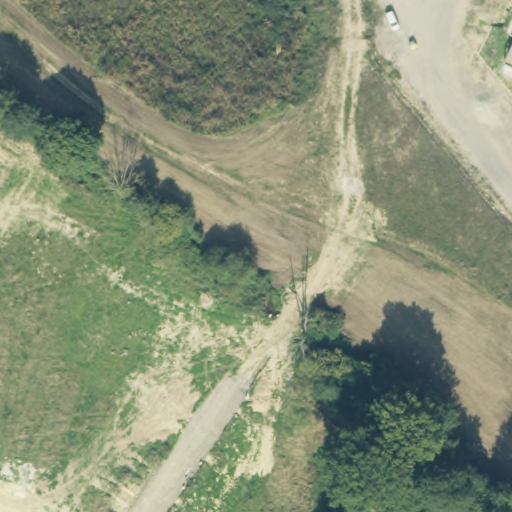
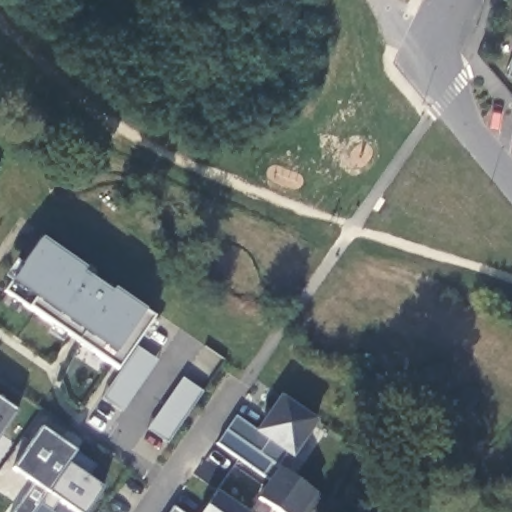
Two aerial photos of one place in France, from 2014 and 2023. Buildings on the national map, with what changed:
unchanged [(502,76),(506,67),(512,56),(512,81),(502,76)]
new [(15,262),(22,267),(41,240),(85,270),(83,275),(109,293),(112,288),(144,312),(152,320),(158,324),(149,339),(147,337),(142,335),(118,370),(65,333),(62,341),(47,331),(52,323),(29,306),(5,291),(11,283),(4,278),(15,262)]
new [(140,348),(160,362),(125,414),(105,400),(140,348)]
new [(185,379),(205,392),(170,444),(150,430),(185,379)]
new [(292,459),(286,455),(276,468),(314,496),(304,512),(276,512),(257,500),(269,480),(217,444),(236,416),(256,430),(279,396),(317,423),(292,459)]
new [(0,400),(16,411),(0,435),(0,400)]
new [(101,488),(85,512),(74,512),(56,500),(49,511),(50,512),(12,512),(31,481),(14,470),(40,431),(75,454),(95,467),(85,478),(101,488)]
new [(205,512),(217,492),(244,512),(205,512)]
new [(178,512),(170,512),(172,508),(178,512)]

